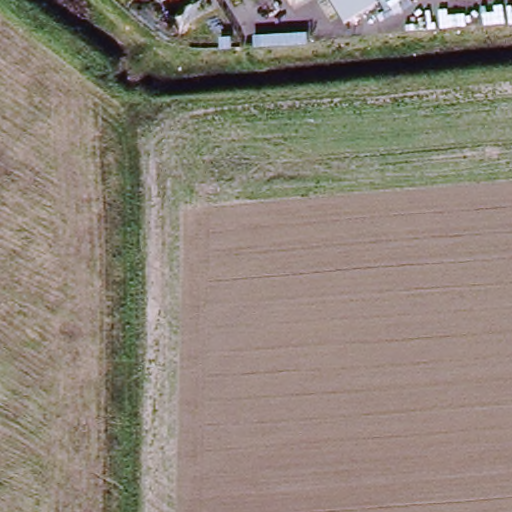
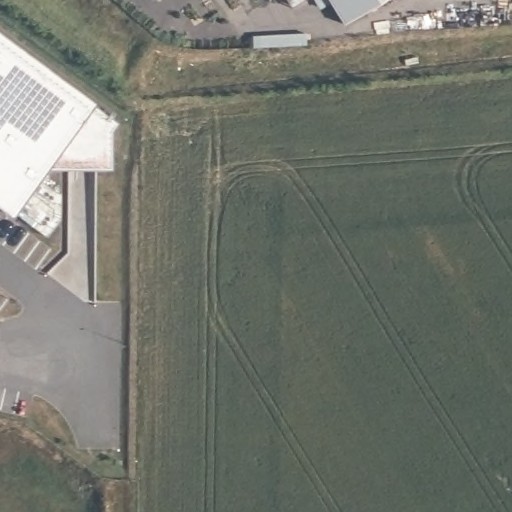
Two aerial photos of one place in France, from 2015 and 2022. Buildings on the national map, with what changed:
unchanged [(345,26),(329,0),(388,0),(345,26)]
new [(95,104),(118,122),(113,130),(112,169),(49,167),(13,218),(0,209),(0,33),(95,104)]

